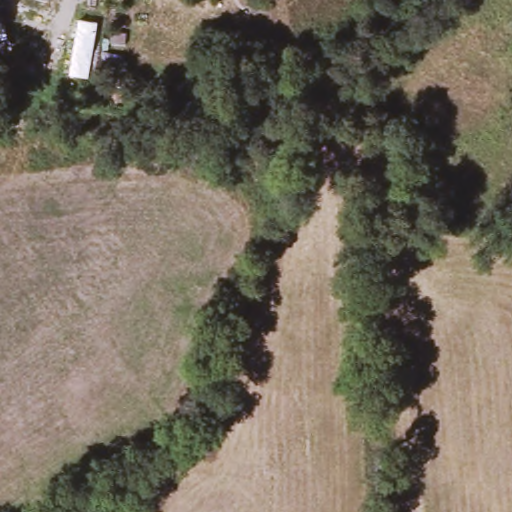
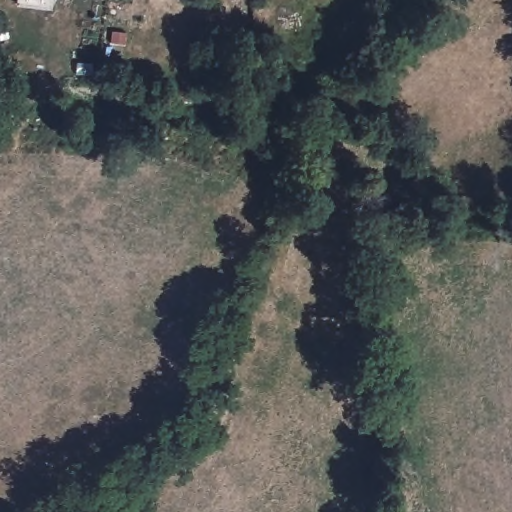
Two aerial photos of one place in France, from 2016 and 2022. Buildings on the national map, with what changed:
unchanged [(98,23),(87,78),(69,75),(77,20),(98,23)]

